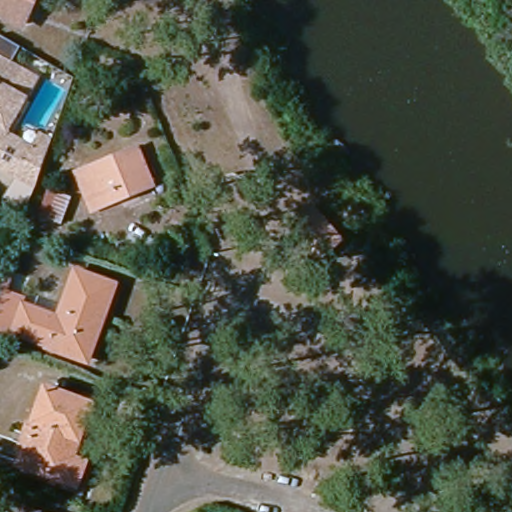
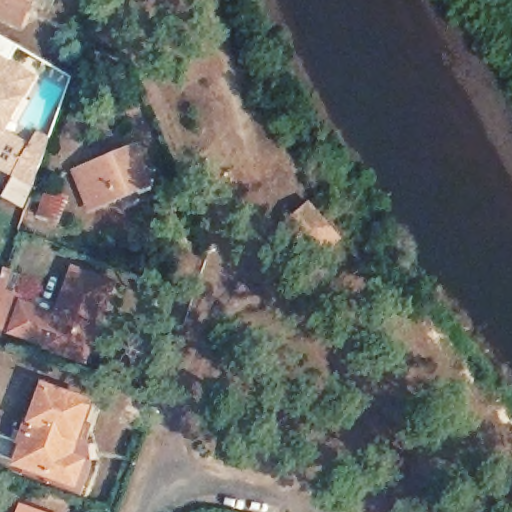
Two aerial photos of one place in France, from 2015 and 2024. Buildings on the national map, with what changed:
unchanged [(0,10),(0,0),(39,0),(28,23),(0,10)]
unchanged [(13,39),(3,57),(34,74),(17,105),(21,106),(15,119),(11,116),(5,129),(0,138),(0,31),(13,39)]
unchanged [(16,168),(0,160),(0,138),(5,129),(31,141),(38,128),(54,136),(47,150),(35,176),(16,168)]
unchanged [(155,186),(90,212),(75,173),(138,148),(155,186)]
unchanged [(285,223),(308,205),(336,241),(312,259),(285,223)]
unchanged [(5,271),(13,274),(6,292),(24,299),(22,304),(60,317),(76,270),(115,284),(90,360),(0,329),(0,286),(5,271)]
unchanged [(18,441),(24,427),(27,428),(42,387),(86,403),(67,458),(79,463),(71,486),(14,466),(21,443),(18,441)]
unchanged [(55,512),(25,512),(29,503),(55,512)]

